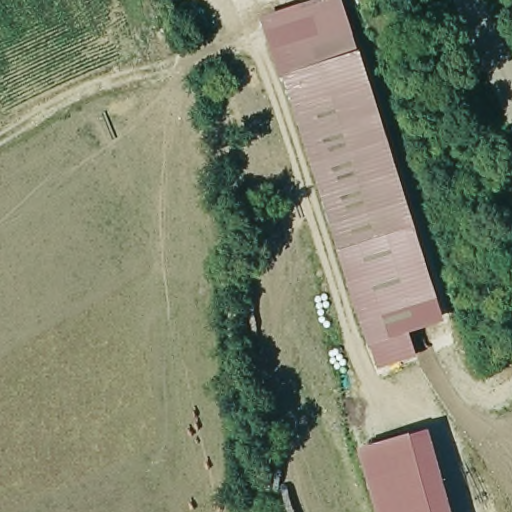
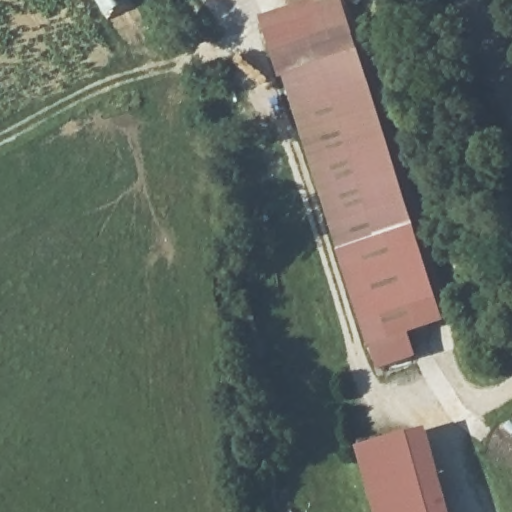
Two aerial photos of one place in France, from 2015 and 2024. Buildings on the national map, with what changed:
unchanged [(261,23),(332,0),(342,0),(446,322),(365,350),(261,23)]
unchanged [(450,512),(377,512),(360,450),(428,431),(450,512)]

